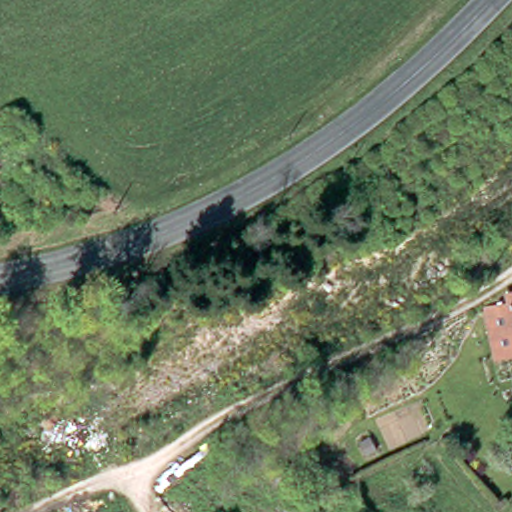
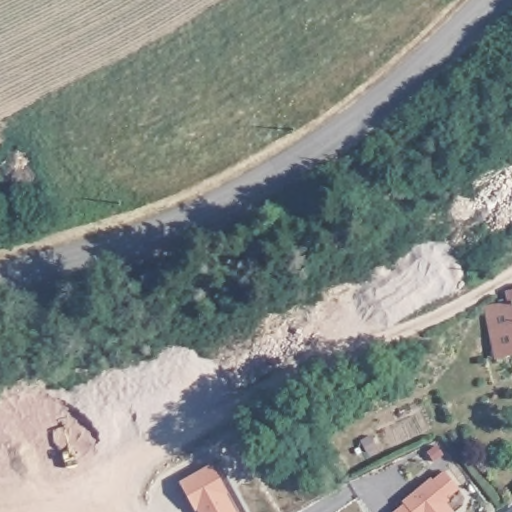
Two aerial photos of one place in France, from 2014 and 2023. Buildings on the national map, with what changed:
unchanged [(498,350),(490,305),(512,302),(512,348),(498,350)]
new [(454,512),(393,512),(391,510),(402,501),(400,499),(429,475),(431,477),(442,468),(460,485),(447,496),(451,497),(445,501),(455,511),(454,512)]
new [(196,511),(195,512),(193,512),(178,488),(211,469),(225,495),(222,496),(232,512),(197,512),(196,511)]
new [(507,509),(512,506),(512,512),(509,512),(507,509)]

